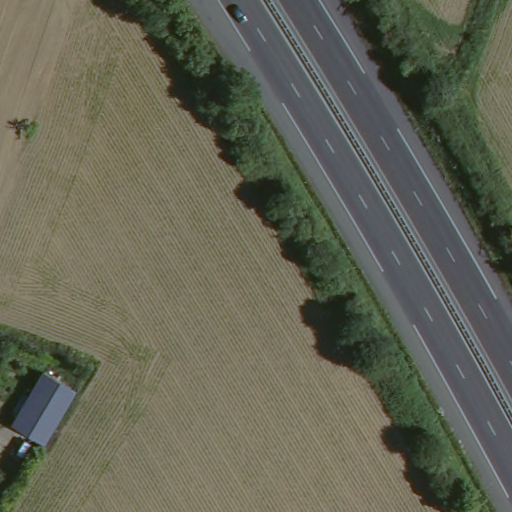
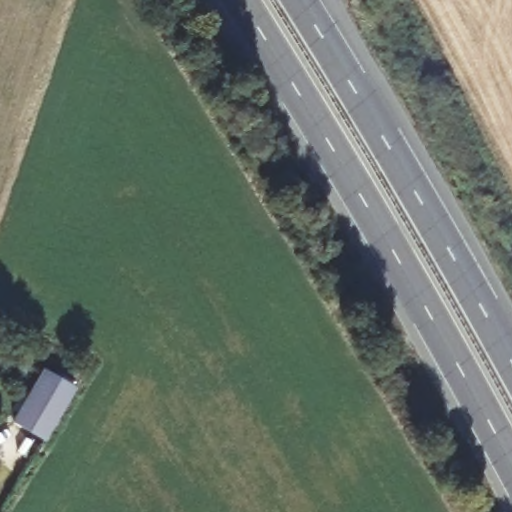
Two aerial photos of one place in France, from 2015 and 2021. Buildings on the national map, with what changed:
unchanged [(45,442),(14,423),(45,374),(75,392),(45,442)]

